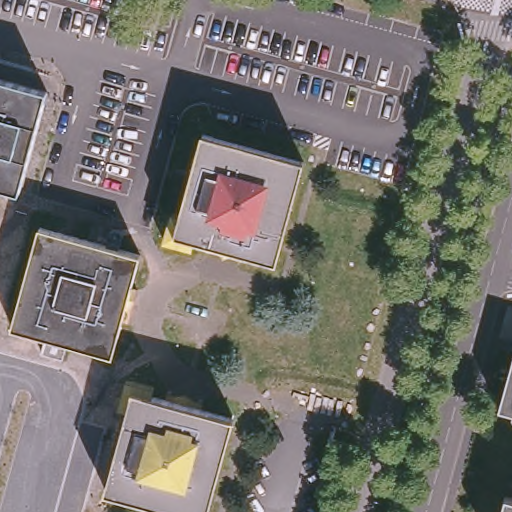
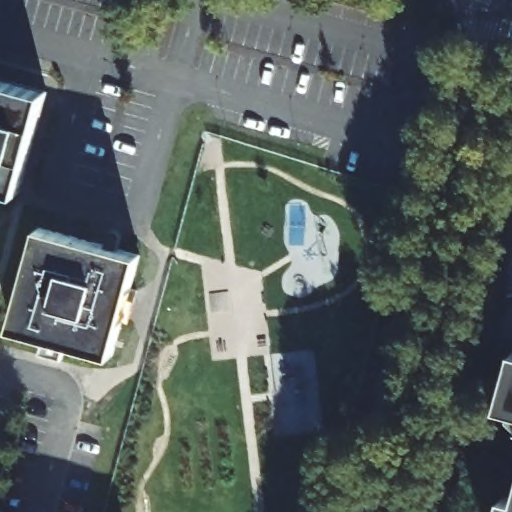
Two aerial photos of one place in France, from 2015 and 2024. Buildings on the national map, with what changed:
unchanged [(17,191),(0,187),(0,78),(46,90),(17,191)]
demolished [(170,236),(177,208),(184,210),(207,130),(305,156),(277,258),(198,235),(195,243),(170,236)]
unchanged [(130,313),(123,312),(110,356),(10,327),(37,227),(138,256),(129,289),(135,291),(130,313)]
unchanged [(498,407),(512,361),(512,411),(498,407)]
demolished [(180,512),(104,491),(127,408),(118,406),(126,379),(152,387),(150,395),(231,418),(205,512),(180,512)]
unchanged [(512,484),(512,512),(499,512),(507,483),(512,484)]
demolished [(68,512),(0,512),(0,492),(69,510),(68,512)]

